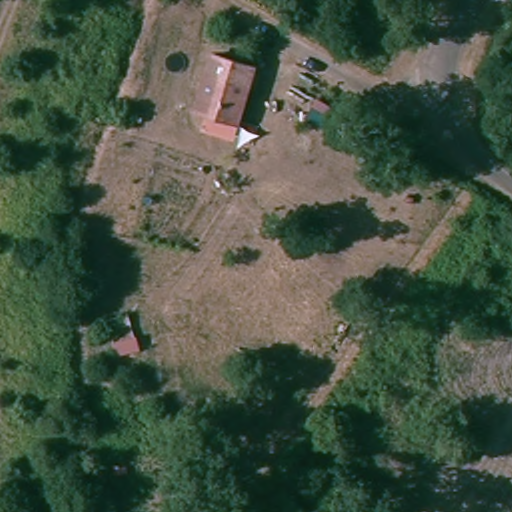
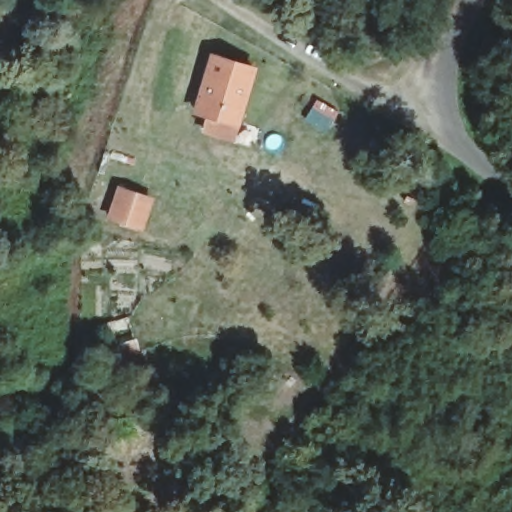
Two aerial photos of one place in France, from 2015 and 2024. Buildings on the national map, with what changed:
unchanged [(236,138),(204,129),(207,112),(196,110),(209,50),(254,61),(236,138)]
new [(154,196),(142,230),(103,216),(115,182),(154,196)]

